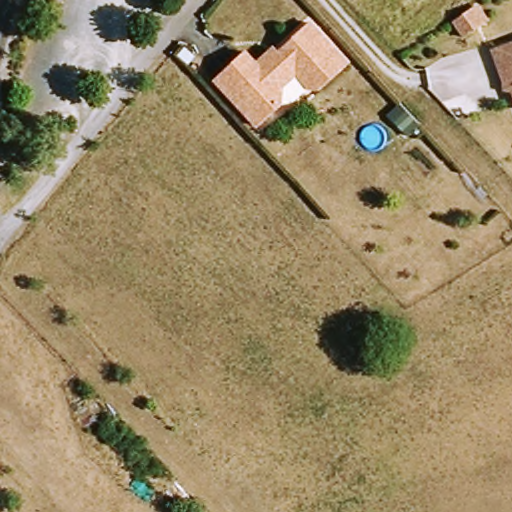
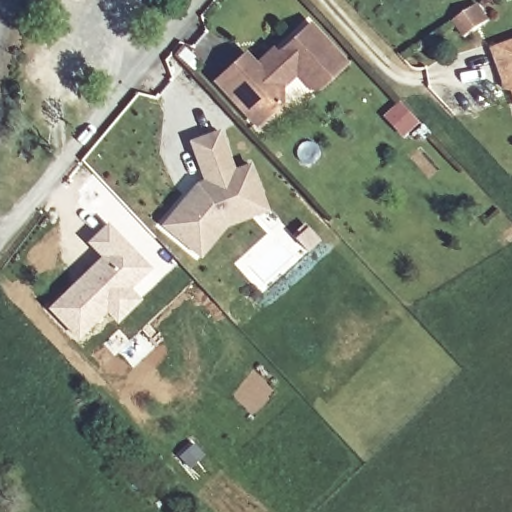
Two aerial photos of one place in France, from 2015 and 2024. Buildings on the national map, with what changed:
new [(473,5),(485,23),(463,38),(452,20),(473,5)]
unchanged [(250,64),(263,53),(272,58),(279,52),(275,48),(303,20),(342,61),(317,87),(305,87),(289,71),(278,81),(278,105),(256,126),(212,81),(241,54),(250,64)]
unchanged [(512,43),(512,79),(507,80),(495,51),(512,43)]
unchanged [(405,127),(385,109),(395,99),(416,118),(405,127)]
new [(223,224),(198,255),(193,251),(161,226),(193,184),(205,180),(188,141),(213,131),(230,170),(245,164),(255,189),(263,207),(223,224)]
new [(131,289),(142,300),(118,324),(107,313),(78,339),(48,309),(102,258),(87,242),(108,222),(151,268),(131,289)]

